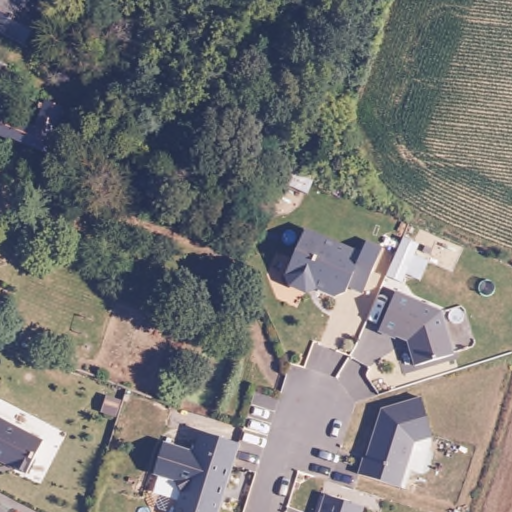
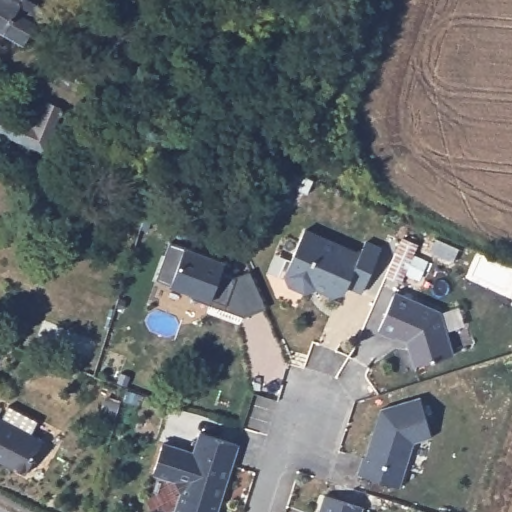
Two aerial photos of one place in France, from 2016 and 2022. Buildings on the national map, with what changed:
unchanged [(0,34),(0,0),(27,0),(34,4),(31,11),(13,42),(0,34)]
unchanged [(6,67),(0,81),(0,64),(6,67)]
unchanged [(92,75),(95,65),(106,69),(102,77),(92,75)]
unchanged [(61,107),(47,142),(0,125),(0,112),(1,110),(2,108),(29,119),(38,98),(61,107)]
unchanged [(68,151),(59,174),(55,172),(37,166),(47,142),(68,151)]
new [(282,165),(314,180),(307,195),(275,180),(282,165)]
unchanged [(307,231),(361,248),(362,243),(379,249),(364,295),(355,291),(346,295),(337,298),(317,290),(306,294),(291,287),(286,276),(307,231)]
new [(403,238),(419,245),(402,282),(386,276),(403,238)]
new [(244,317),(192,297),(193,293),(171,285),(155,279),(170,242),(185,247),(226,262),(222,272),(236,277),(249,272),(265,308),(244,317)]
unchanged [(409,344),(403,342),(380,334),(397,291),(446,307),(463,349),(416,369),(409,344)]
unchanged [(423,383),(439,432),(416,440),(400,495),(347,479),(353,460),(356,461),(364,433),(370,435),(372,427),(367,425),(375,398),(423,383)]
unchanged [(42,437),(25,475),(0,463),(0,417),(42,437)]
unchanged [(221,512),(175,512),(181,491),(175,479),(153,472),(165,440),(195,447),(201,429),(242,441),(221,512)]
unchanged [(324,500),(363,512),(362,512),(320,512),(324,500)]

